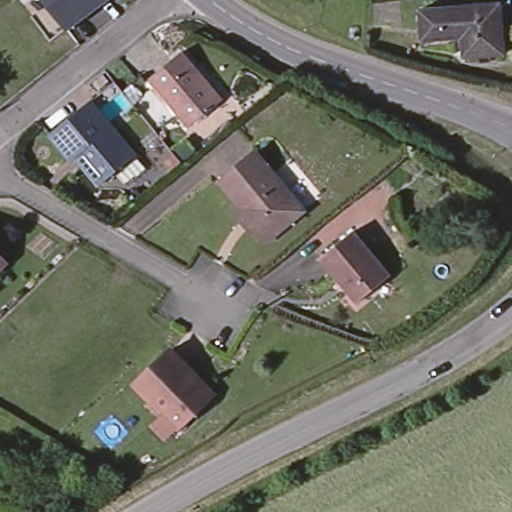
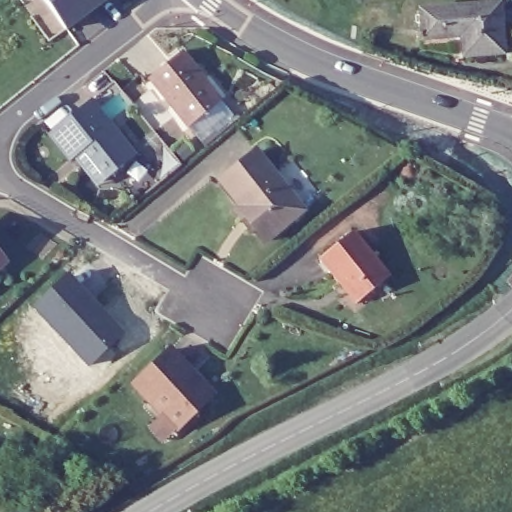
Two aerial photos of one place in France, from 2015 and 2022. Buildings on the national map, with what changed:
unchanged [(98,0),(100,3),(65,29),(44,0),(98,0)]
unchanged [(104,0),(100,3),(98,0),(104,0)]
unchanged [(500,0),(504,49),(464,52),(462,33),(422,35),(420,6),(500,0)]
unchanged [(185,125),(146,76),(180,49),(218,97),(185,125)]
unchanged [(82,152),(72,160),(52,135),(92,102),(137,156),(106,181),(82,152)]
unchanged [(257,154),(304,212),(267,242),(257,229),(252,233),(237,212),(242,208),(222,183),(257,154)]
unchanged [(354,233),(390,278),(357,305),(321,260),(354,233)]
unchanged [(0,264),(0,253),(5,259),(0,264)]
new [(70,275),(125,333),(89,367),(34,309),(70,275)]
unchanged [(165,410),(135,379),(171,345),(214,391),(177,424),(166,435),(154,421),(165,410)]

